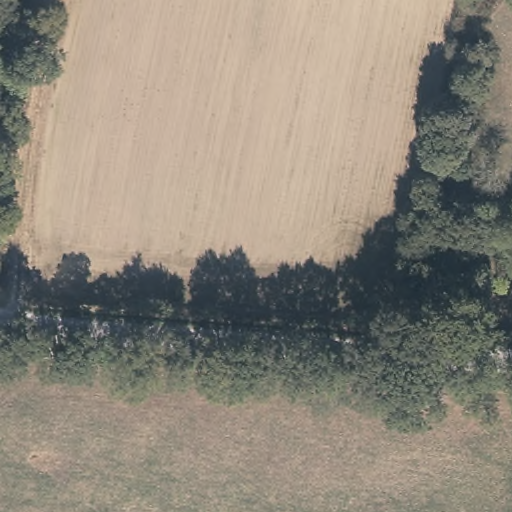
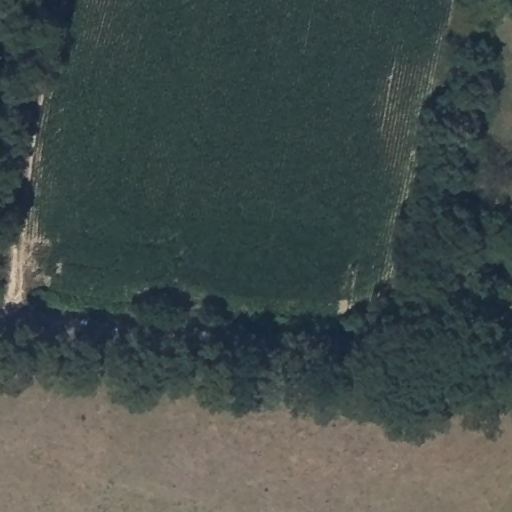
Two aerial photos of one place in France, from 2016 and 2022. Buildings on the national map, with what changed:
[]

